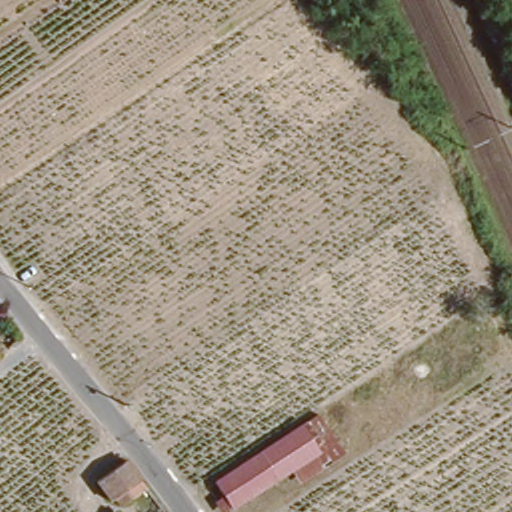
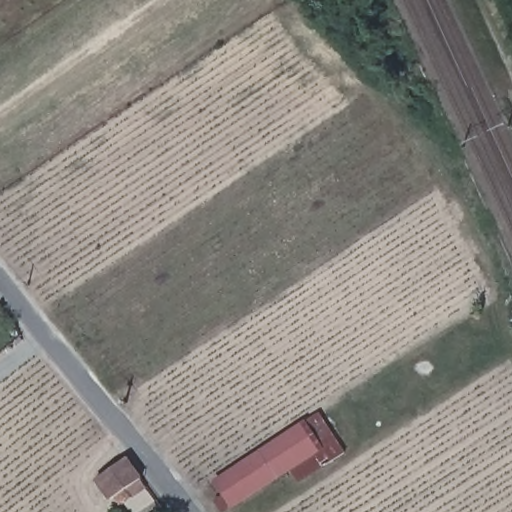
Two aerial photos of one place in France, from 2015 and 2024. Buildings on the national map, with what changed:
unchanged [(343,451),(320,466),(311,452),(279,475),(227,507),(212,483),(265,448),(318,412),(343,451)]
unchanged [(143,477),(130,486),(135,492),(122,502),(118,495),(114,498),(99,476),(127,456),(143,477)]

